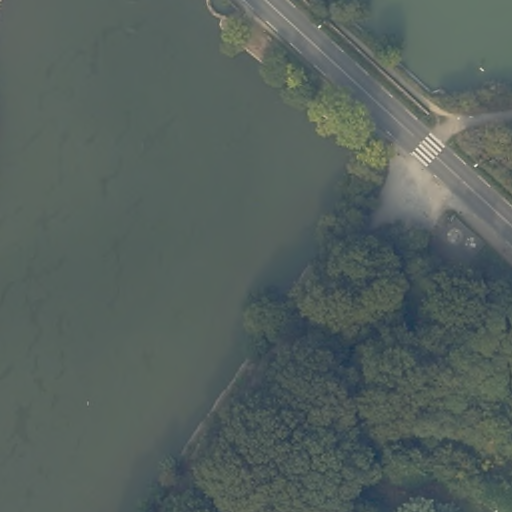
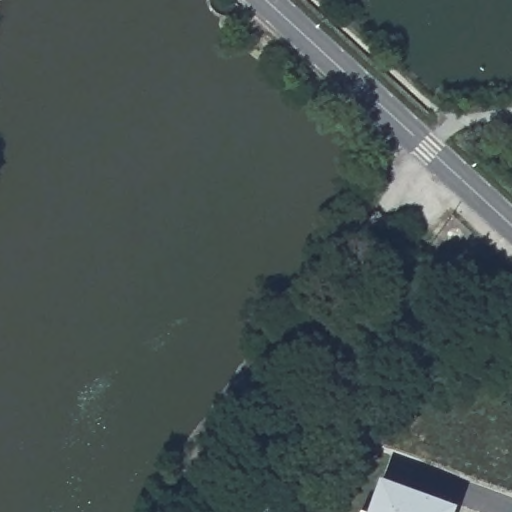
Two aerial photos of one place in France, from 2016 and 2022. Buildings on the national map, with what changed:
new [(382,477),(456,503),(454,512),(369,512),(382,477)]

